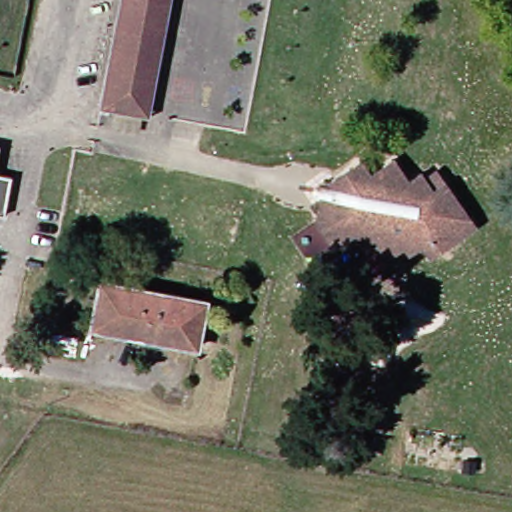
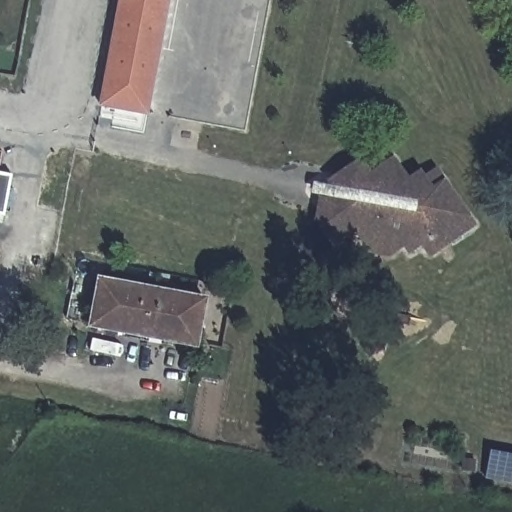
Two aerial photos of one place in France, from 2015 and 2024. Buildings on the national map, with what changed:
unchanged [(154,114),(109,106),(127,0),(173,0),(154,114)]
unchanged [(368,258),(360,243),(353,237),(332,249),(318,229),(319,204),(315,198),(317,188),(361,158),(372,173),(394,159),(409,181),(421,174),(423,176),(436,169),(445,182),(476,227),(432,258),(422,244),(416,250),(405,247),(389,261),(368,258)]
unchanged [(8,211),(0,209),(0,166),(15,169),(8,211)]
unchanged [(103,281),(208,300),(201,341),(94,325),(103,281)]
new [(490,452),(512,456),(512,483),(485,479),(490,452)]

